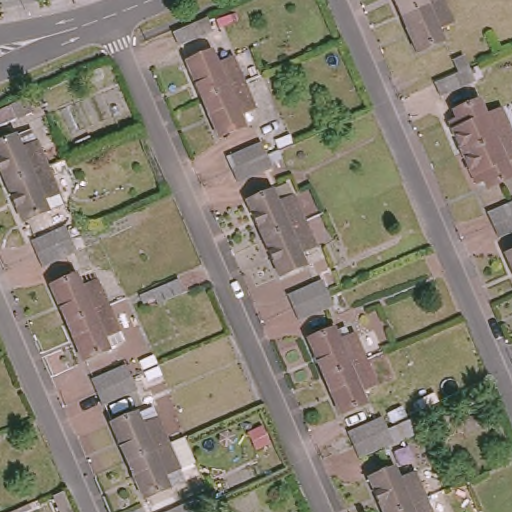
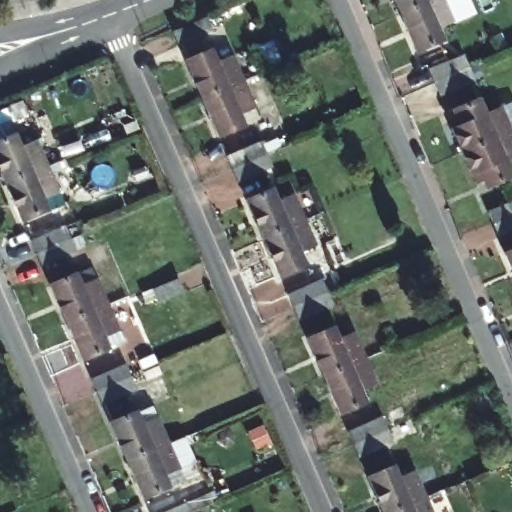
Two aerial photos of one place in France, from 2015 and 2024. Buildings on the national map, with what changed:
unchanged [(396,17),(389,0),(436,0),(396,17)]
unchanged [(447,25),(431,32),(436,45),(412,55),(396,17),(436,0),(447,25)]
unchanged [(217,29),(182,45),(175,30),(211,15),(217,29)]
unchanged [(197,99),(182,62),(207,51),(212,61),(228,54),(240,80),(197,99)]
unchanged [(436,92),(431,81),(454,71),(447,56),(458,52),(465,66),(469,77),(436,92)]
unchanged [(235,115),(240,125),(214,136),(197,99),(240,80),(251,107),(235,115)]
unchanged [(461,152),(452,130),(455,129),(452,122),(457,120),(454,111),(479,100),(484,113),(500,106),(510,131),(461,152)]
unchanged [(0,124),(0,109),(7,105),(13,117),(0,124)]
unchanged [(512,136),(512,157),(505,160),(511,175),(486,186),(482,177),(477,180),(474,172),(471,174),(461,152),(510,131),(512,136)]
unchanged [(0,180),(0,140),(12,135),(17,145),(29,140),(41,166),(2,183),(0,180)]
unchanged [(232,167),(227,155),(261,140),(266,152),(271,165),(238,180),(232,167)]
unchanged [(52,193),(39,199),(44,209),(17,220),(2,183),(41,166),(52,193)]
unchanged [(258,236),(242,199),(267,187),(272,199),(286,191),(297,220),(258,236)]
unchanged [(500,237),(494,224),(489,212),(512,202),(512,232),(500,237)]
unchanged [(295,250),(300,262),(274,273),(258,236),(297,220),(307,244),(295,250)]
unchanged [(77,247),(43,262),(38,251),(32,239),(67,224),(72,236),(77,247)]
unchanged [(501,254),(512,248),(512,280),(501,254)]
unchanged [(67,326),(51,290),(76,279),(77,282),(90,276),(105,310),(67,326)]
unchanged [(182,290),(157,301),(151,289),(176,277),(182,290)]
unchanged [(335,304),(298,320),(292,307),(287,295),(323,280),(329,292),(335,304)]
unchanged [(116,337),(105,342),(109,352),(82,365),(67,326),(105,310),(116,337)]
unchanged [(324,386),(309,350),(333,338),(338,350),(354,343),(364,368),(324,386)]
unchanged [(137,388),(104,403),(97,390),(93,377),(127,362),(132,375),(137,388)]
unchanged [(361,402),(365,412),(340,423),(324,386),(364,368),(376,395),(361,402)]
unchanged [(360,456),(356,443),(351,432),(386,416),(391,428),(396,441),(360,456)]
unchanged [(127,465),(112,429),(136,418),(142,429),(159,422),(170,447),(127,465)]
unchanged [(181,473),(164,480),(167,490),(143,501),(127,465),(170,447),(181,473)]
unchanged [(378,512),(363,478),(389,468),(392,479),(409,471),(421,497),(386,512),(378,512)]
unchanged [(427,512),(386,512),(421,497),(427,512)]
unchanged [(194,512),(161,512),(189,500),(194,512)]

